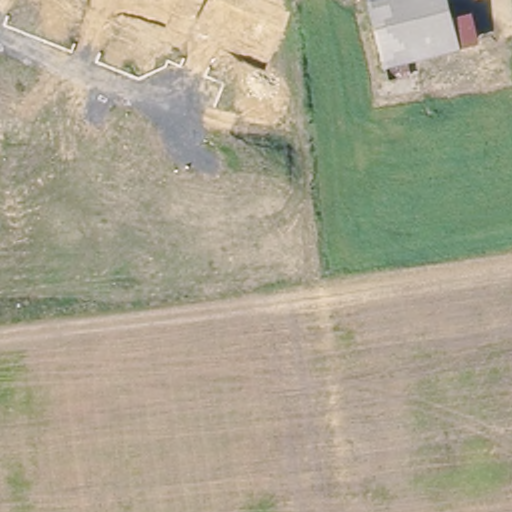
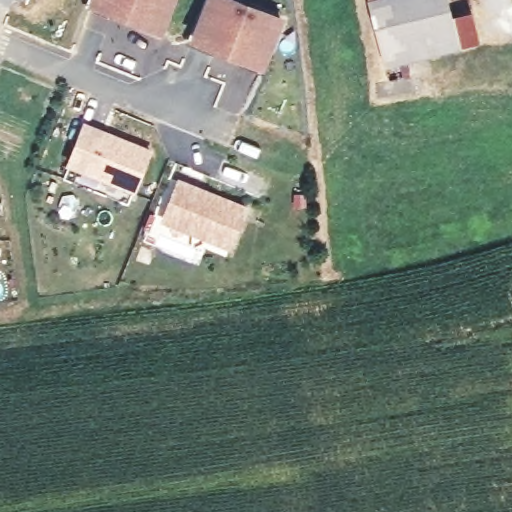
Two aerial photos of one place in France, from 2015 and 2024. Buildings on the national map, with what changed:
new [(99,0),(178,0),(165,31),(97,2),(99,0)]
new [(215,0),(233,0),(285,22),(266,69),(198,40),(215,0)]
unchanged [(407,57),(408,71),(387,76),(372,0),(450,0),(459,47),(407,57)]
new [(154,149),(137,193),(65,167),(84,122),(154,149)]
new [(183,182),(249,210),(233,249),(167,221),(183,182)]

